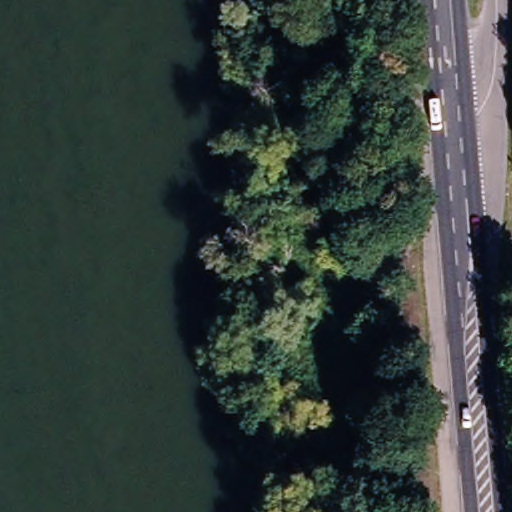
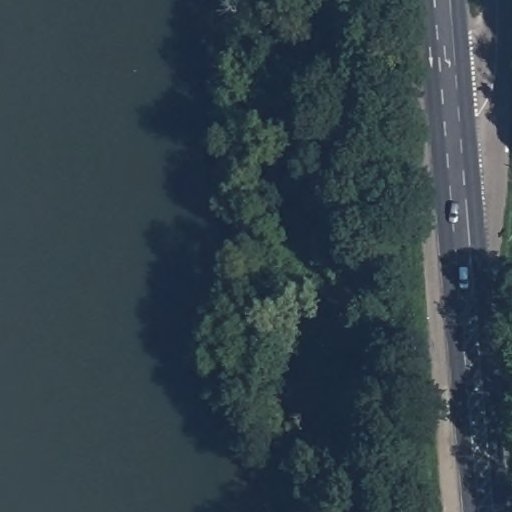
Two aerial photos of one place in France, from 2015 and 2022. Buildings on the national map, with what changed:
[]

